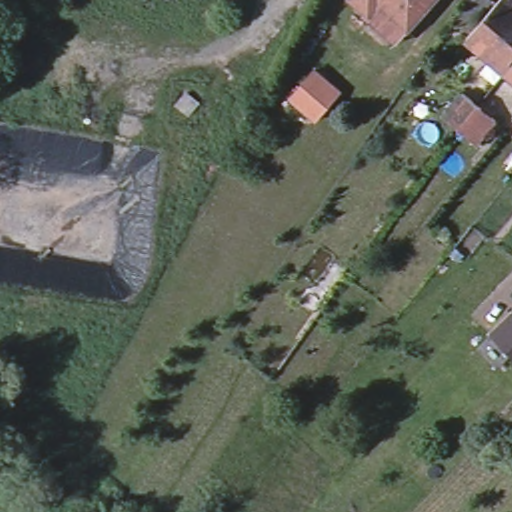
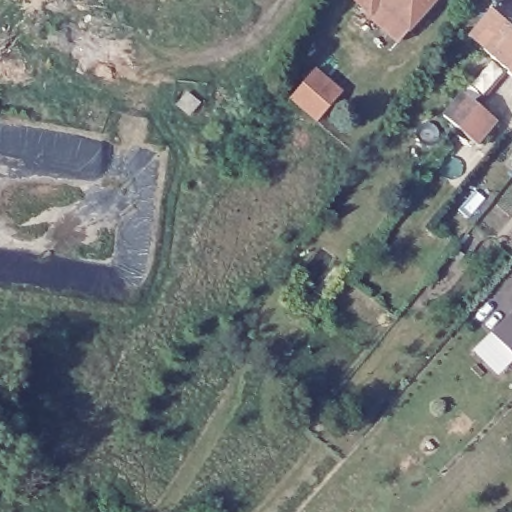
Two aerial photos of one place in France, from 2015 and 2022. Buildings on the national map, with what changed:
unchanged [(366,12),(368,10),(360,3),(357,0),(431,0),(407,28),(397,40),(390,34),(366,12)]
unchanged [(512,0),(512,61),(505,68),(468,34),(498,0),(512,0)]
unchanged [(512,61),(512,74),(505,68),(512,61)]
unchanged [(340,93),(315,121),(289,99),(313,70),(340,93)]
unchanged [(177,100),(187,90),(197,99),(188,109),(177,100)]
unchanged [(474,144),(456,128),(442,115),(462,93),(475,105),(494,120),(474,144)]
unchanged [(482,340),(480,339),(512,306),(512,371),(482,340)]

